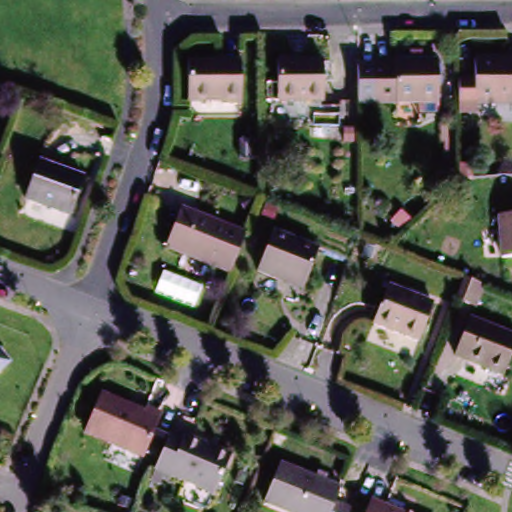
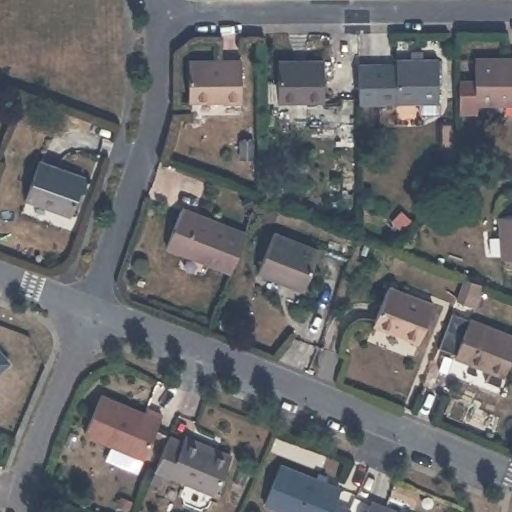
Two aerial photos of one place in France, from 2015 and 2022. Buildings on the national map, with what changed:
unchanged [(375,67),(395,67),(395,61),(412,61),(412,49),(427,49),(427,61),(436,61),(436,105),(395,105),(375,105),(375,67)]
unchanged [(477,60),(512,59),(512,104),(477,104),(477,112),(456,112),(456,82),(477,82),(477,60)]
unchanged [(239,62),(238,106),(221,106),(221,103),(188,102),(189,61),(239,62)]
unchanged [(276,103),(276,64),(320,64),(320,104),(276,103)]
unchanged [(25,201),(39,164),(82,179),(68,217),(25,201)]
unchanged [(163,246),(175,207),(244,228),(231,267),(163,246)]
unchanged [(496,222),(512,219),(512,258),(502,260),(496,222)]
unchanged [(282,280),(259,273),(271,236),(316,249),(306,280),(304,288),(282,280)]
unchanged [(377,250),(371,264),(358,260),(363,245),(377,250)]
unchanged [(466,305),(472,288),(494,297),(487,314),(466,305)]
unchanged [(374,327),(387,290),(430,305),(417,342),(374,327)]
unchanged [(466,320),(512,335),(512,355),(505,376),(453,359),(466,320)]
unchanged [(11,363),(0,372),(0,350),(11,363)]
unchanged [(140,413),(142,408),(158,415),(139,458),(79,433),(96,395),(140,413)]
unchanged [(167,480),(164,487),(157,483),(162,472),(161,472),(168,454),(176,437),(190,442),(192,437),(238,456),(221,497),(176,477),(174,482),(167,480)]
unchanged [(341,491),(332,512),(278,512),(265,507),(282,467),(341,491)]
unchanged [(395,512),(367,512),(371,502),(395,512)]

